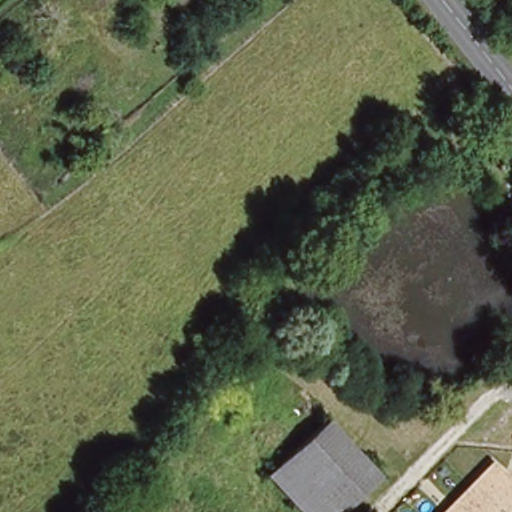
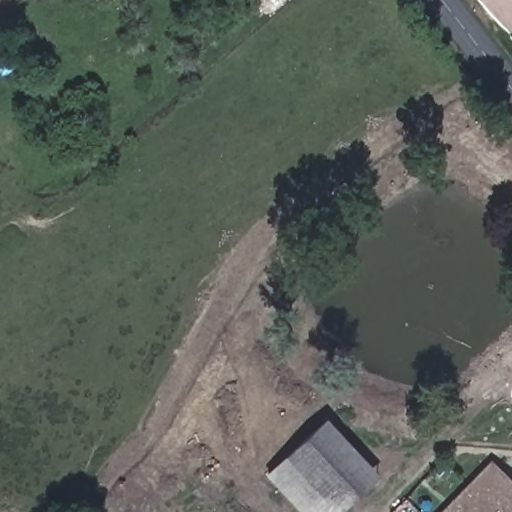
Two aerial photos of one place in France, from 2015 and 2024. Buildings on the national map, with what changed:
new [(512,33),(506,36),(484,0),(512,0),(512,33)]
unchanged [(326,421),(377,475),(337,512),(306,512),(270,475),(326,421)]
unchanged [(512,482),(512,512),(443,512),(492,462),(512,482)]

